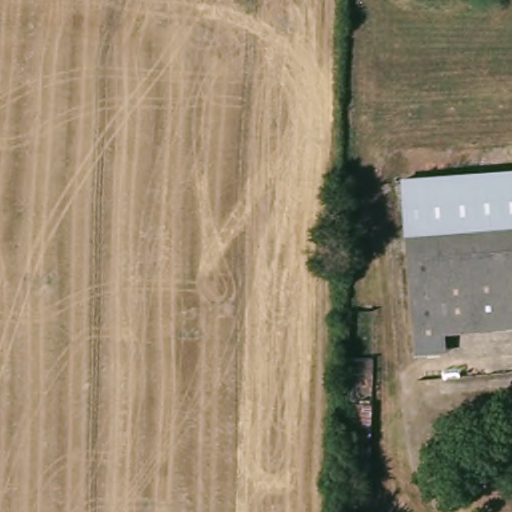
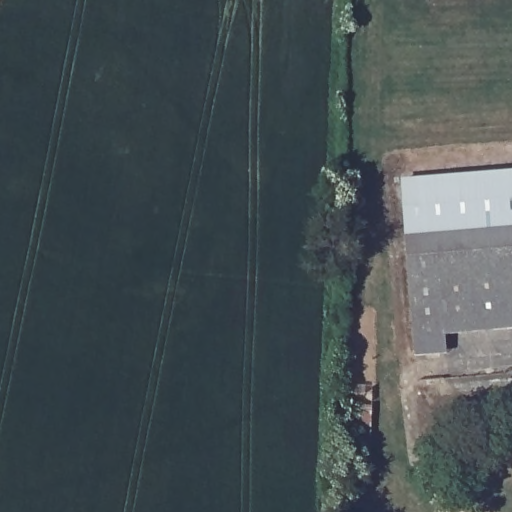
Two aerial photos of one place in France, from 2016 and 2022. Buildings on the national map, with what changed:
unchanged [(512,170),(512,322),(444,326),(446,350),(416,351),(403,176),(512,170)]

